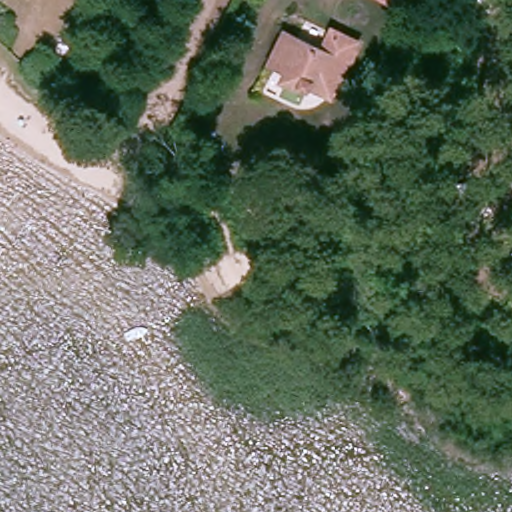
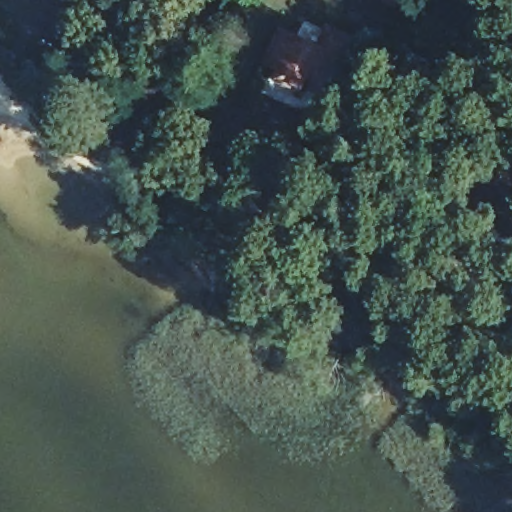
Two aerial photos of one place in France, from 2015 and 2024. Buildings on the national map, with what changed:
unchanged [(393,0),(390,6),(381,0),(393,0)]
unchanged [(287,67),(274,58),(288,32),(323,51),(333,31),(352,44),(327,89),(312,80),(307,87),(282,74),(287,67)]

